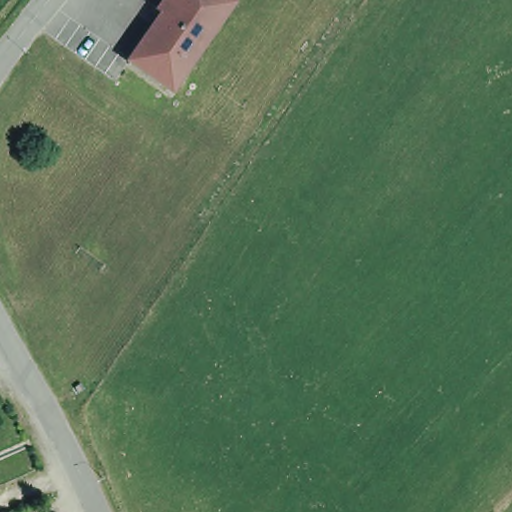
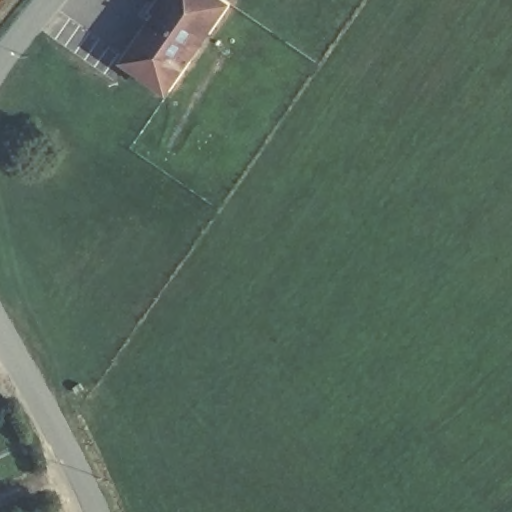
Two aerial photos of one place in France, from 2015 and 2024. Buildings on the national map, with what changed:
unchanged [(122,61),(161,0),(238,0),(174,94),(122,61)]

